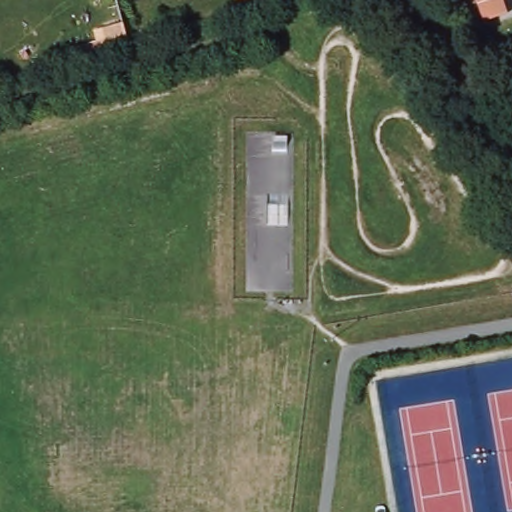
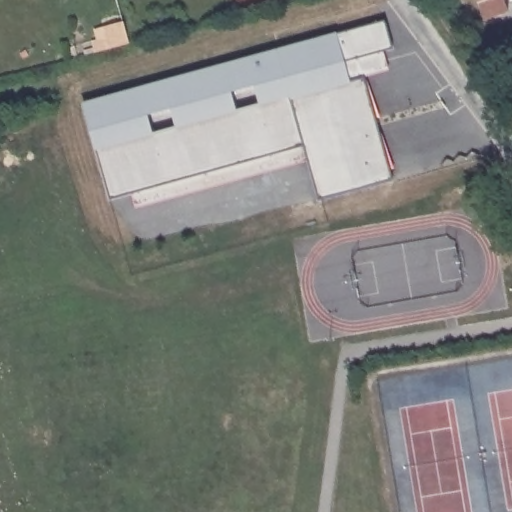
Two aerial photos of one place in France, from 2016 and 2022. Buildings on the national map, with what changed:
unchanged [(481,22),(475,0),(504,0),(507,13),(481,22)]
new [(319,198),(304,144),(111,197),(83,104),(337,33),(384,21),(392,47),(384,49),(389,71),(364,77),(392,178),(319,198)]
new [(95,29),(103,27),(124,21),(129,43),(109,49),(96,52),(93,41),(98,40),(95,29)]

